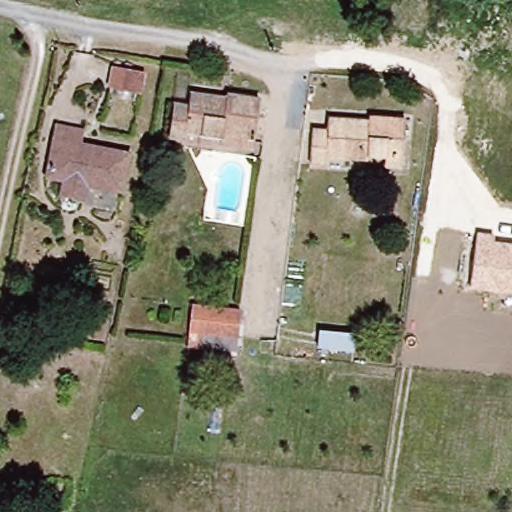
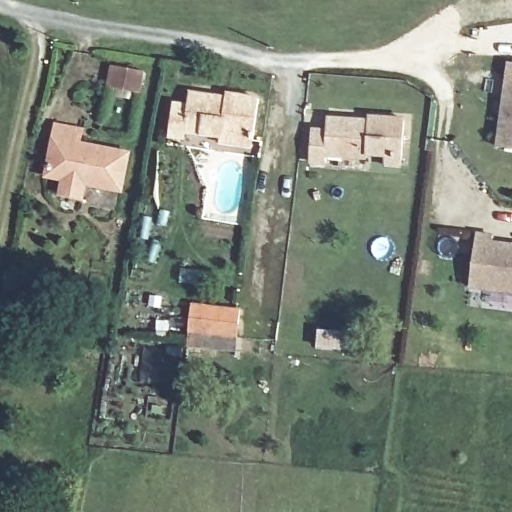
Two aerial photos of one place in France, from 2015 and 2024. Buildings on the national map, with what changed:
new [(507,62),(512,63),(512,149),(495,147),(500,115),(501,105),(507,62)]
unchanged [(143,73),(139,94),(108,88),(112,67),(143,73)]
unchanged [(219,143),(220,138),(184,132),(183,139),(170,138),(174,106),(187,108),(189,94),(225,99),(226,95),(259,100),(254,138),(252,147),(219,143)]
unchanged [(387,165),(388,155),(370,154),(370,158),(327,155),(327,163),(312,162),(314,131),(329,132),(330,119),(371,121),(371,118),(404,120),(402,156),(401,166),(387,165)]
unchanged [(121,192),(85,184),(81,199),(61,195),(64,180),(46,177),(54,140),(56,125),(81,130),(78,145),(128,155),(121,192)]
unchanged [(495,233),(494,242),(512,244),(512,293),(469,288),(476,230),(495,233)]
unchanged [(245,301),(242,328),(240,341),(192,337),(194,323),(197,295),(245,301)]
unchanged [(353,352),(317,348),(318,330),(354,333),(353,352)]

